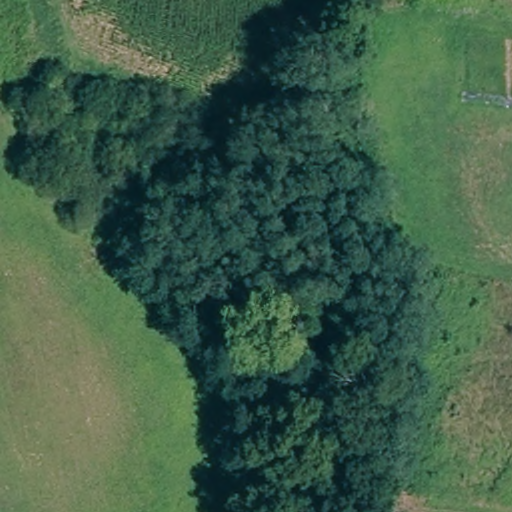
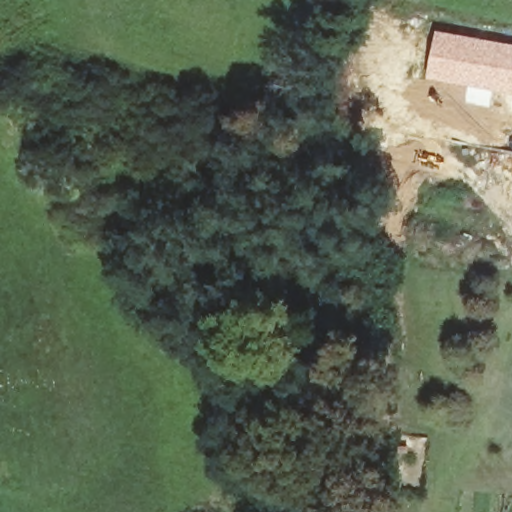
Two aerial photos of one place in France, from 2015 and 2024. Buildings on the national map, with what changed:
new [(434,29),(512,44),(512,95),(425,77),(434,29)]

